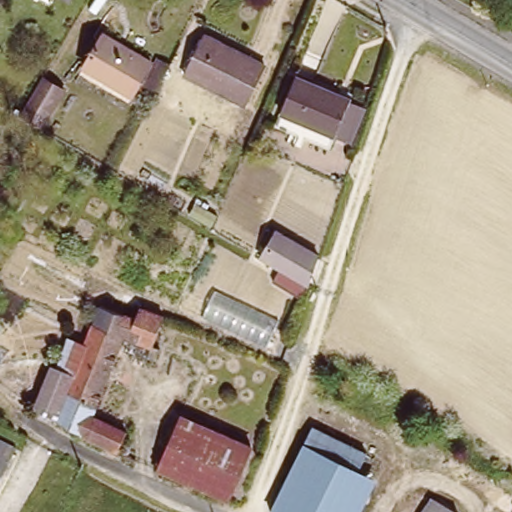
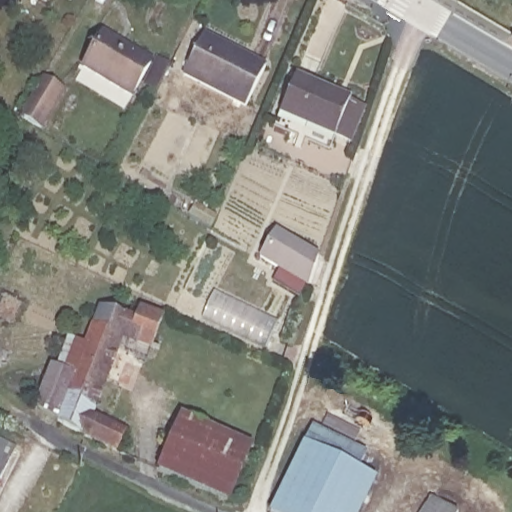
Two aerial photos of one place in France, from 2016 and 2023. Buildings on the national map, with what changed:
unchanged [(58,0),(75,0),(71,7),(58,0)]
unchanged [(154,65),(134,97),(85,68),(105,35),(154,65)]
unchanged [(265,68),(245,106),(185,75),(205,36),(265,68)]
unchanged [(17,108),(40,69),(63,83),(40,123),(17,108)]
unchanged [(351,146),(333,139),(332,141),(278,116),(295,79),(349,103),(348,105),(363,112),(351,146)]
unchanged [(257,256),(274,229),(316,255),(305,285),(257,256)]
unchanged [(47,395),(68,348),(82,355),(105,310),(111,313),(114,306),(158,321),(147,349),(127,342),(93,419),(124,433),(115,452),(62,426),(40,412),(47,395)]
unchanged [(182,420),(252,450),(227,506),(156,473),(182,420)]
unchanged [(310,433),(383,469),(361,512),(268,512),(310,433)]
unchanged [(0,479),(0,447),(12,454),(0,479)]
unchanged [(435,501),(455,512),(427,512),(435,501)]

